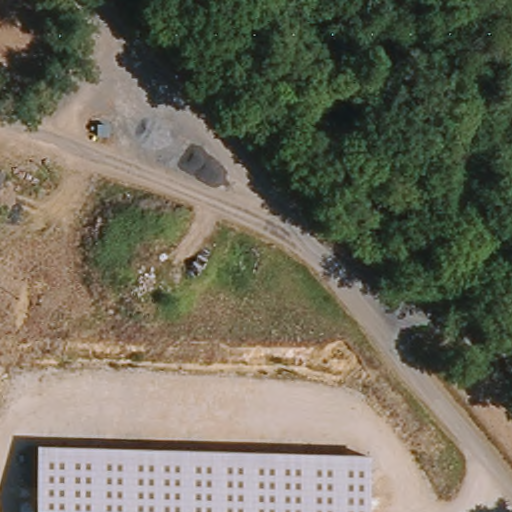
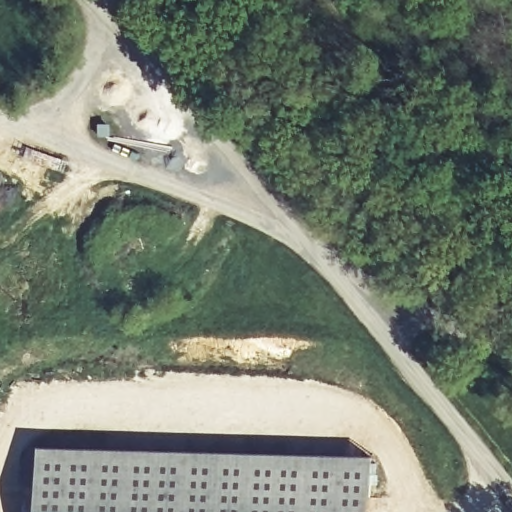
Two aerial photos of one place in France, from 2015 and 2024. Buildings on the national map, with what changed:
unchanged [(371,512),(39,512),(40,447),(371,455),(371,512)]

